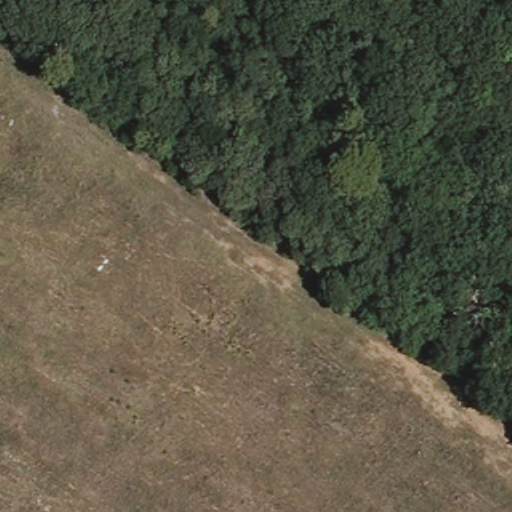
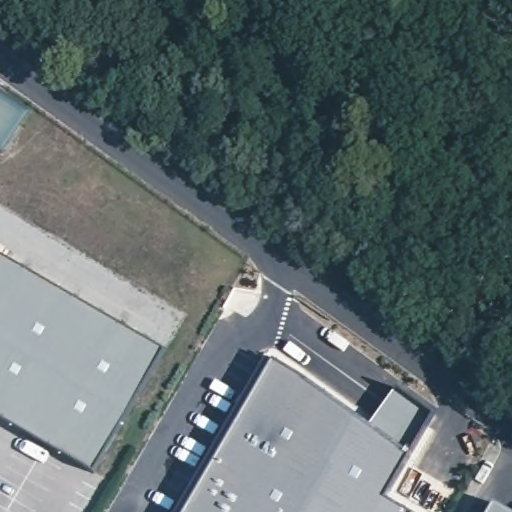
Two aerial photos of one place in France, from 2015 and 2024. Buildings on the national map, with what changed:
new [(94,472),(0,416),(0,254),(165,348),(94,472)]
new [(434,416),(385,497),(408,512),(186,512),(273,361),(369,427),(397,390),(434,416)]
new [(495,504),(508,512),(490,512),(495,504)]

